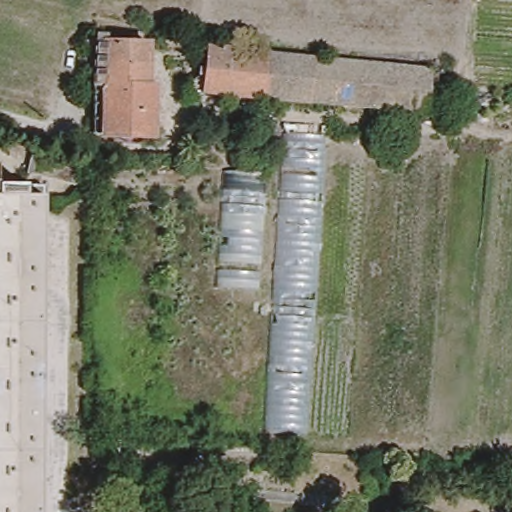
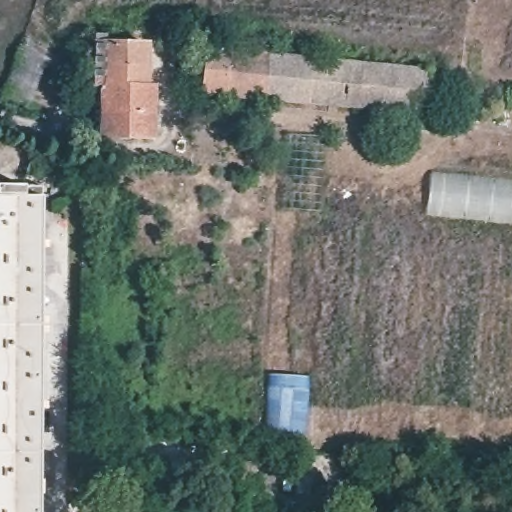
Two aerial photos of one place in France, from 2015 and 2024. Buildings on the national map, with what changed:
unchanged [(105,36),(115,37),(115,41),(161,44),(158,86),(163,86),(161,137),(101,136),(105,36)]
unchanged [(270,100),(205,95),(208,47),(434,67),(431,114),(270,100)]
demolished [(281,139),(324,140),(306,437),(261,433),(281,139)]
unchanged [(79,183),(28,169),(33,150),(84,165),(79,183)]
unchanged [(48,476),(47,512),(0,512),(0,162),(4,162),(5,193),(49,194),(48,384),(48,476)]
new [(427,215),(432,172),(512,180),(512,223),(427,215)]
demolished [(220,174),(266,177),(258,293),(213,291),(220,174)]

